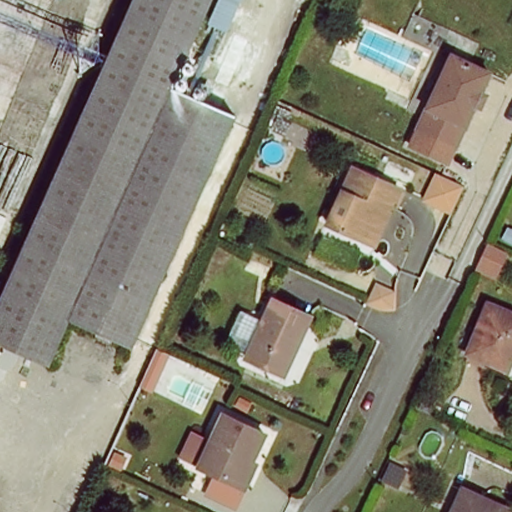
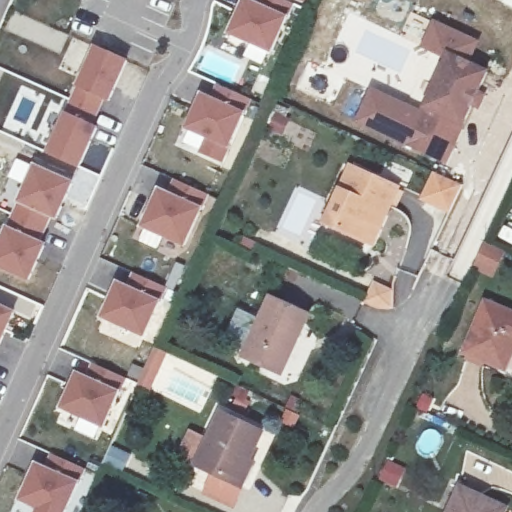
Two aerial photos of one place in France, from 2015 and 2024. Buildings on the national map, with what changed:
demolished [(234,114),(130,346),(64,322),(45,366),(0,347),(0,285),(126,0),(210,0),(170,85),(234,114)]
new [(291,16),(274,54),(228,34),(244,0),(253,0),(256,1),(256,0),(283,0),(296,6),(291,16)]
new [(131,61),(113,104),(107,100),(98,126),(103,128),(83,170),(48,155),(98,46),(131,61)]
unchanged [(449,52),(493,74),(459,147),(415,126),(449,52)]
new [(211,96),(217,84),(256,102),(251,112),(233,150),(228,165),(201,155),(208,140),(187,131),(202,95),(211,96)]
unchanged [(389,89),(413,101),(408,113),(383,102),(389,89)]
new [(60,221),(53,219),(43,242),(50,245),(32,282),(0,270),(0,246),(37,165),(77,183),(60,221)]
unchanged [(365,242),(327,224),(350,170),(399,191),(389,214),(375,247),(365,242)]
new [(436,172),(464,185),(452,212),(424,200),(436,172)]
new [(212,196),(206,208),(187,249),(141,229),(160,189),(168,191),(174,179),(212,196)]
new [(127,285),(134,271),(171,290),(163,301),(147,338),(102,318),(119,282),(127,285)]
unchanged [(467,350),(491,301),(512,311),(512,353),(505,367),(467,350)]
unchanged [(277,302),(309,318),(283,375),(250,360),(277,302)]
new [(1,351),(0,351),(0,304),(19,312),(1,351)]
new [(129,380),(124,392),(107,430),(62,410),(78,371),(89,376),(94,364),(129,380)]
unchanged [(219,413),(258,431),(255,440),(261,442),(239,484),(196,465),(219,413)]
new [(48,467),(52,454),(88,471),(83,483),(70,512),(37,512),(39,509),(20,502),(38,462),(48,467)]
unchanged [(460,491),(504,512),(450,512),(460,491)]

